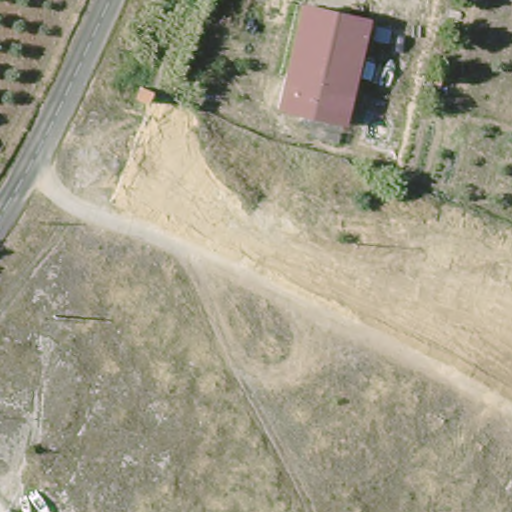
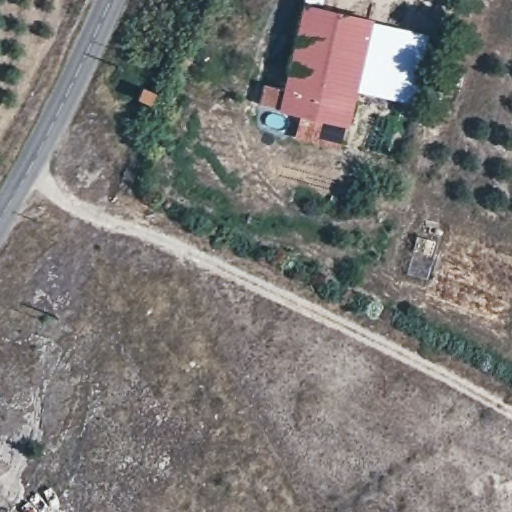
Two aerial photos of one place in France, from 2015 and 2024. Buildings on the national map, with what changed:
unchanged [(280,107),(305,4),(374,22),(348,122),(280,107)]
new [(414,104),(356,91),(374,22),(431,35),(414,104)]

